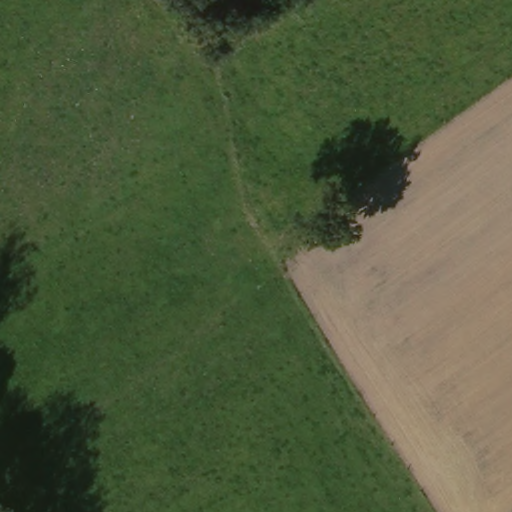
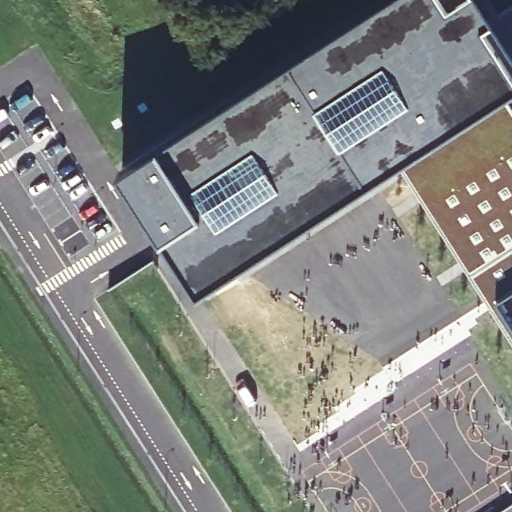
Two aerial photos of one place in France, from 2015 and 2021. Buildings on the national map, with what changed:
new [(487,19),(512,48),(512,84),(445,136),(421,107),(240,243),(245,251),(203,283),(136,192),(393,0),(484,0),(495,15),(487,19)]
new [(447,197),(512,145),(512,282),(447,197)]

